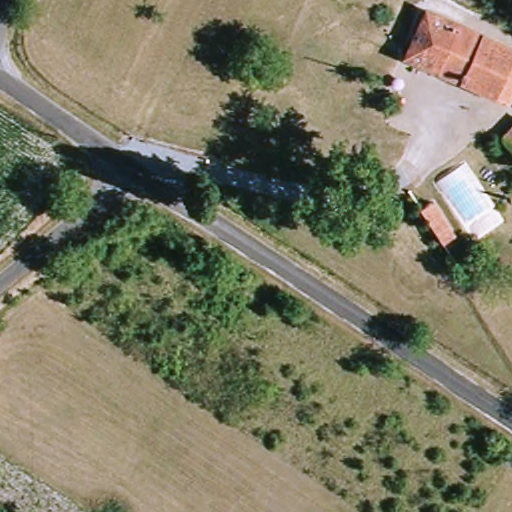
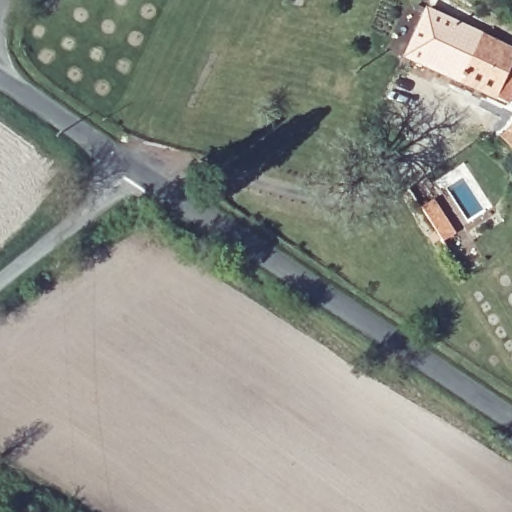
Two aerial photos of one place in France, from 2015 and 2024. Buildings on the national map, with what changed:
unchanged [(407,60),(430,12),(461,27),(440,75),(407,60)]
unchanged [(512,102),(510,107),(440,75),(461,27),(512,51),(512,102)]
unchanged [(512,144),(507,140),(512,134),(512,144)]
unchanged [(447,247),(424,214),(436,206),(458,239),(447,247)]

